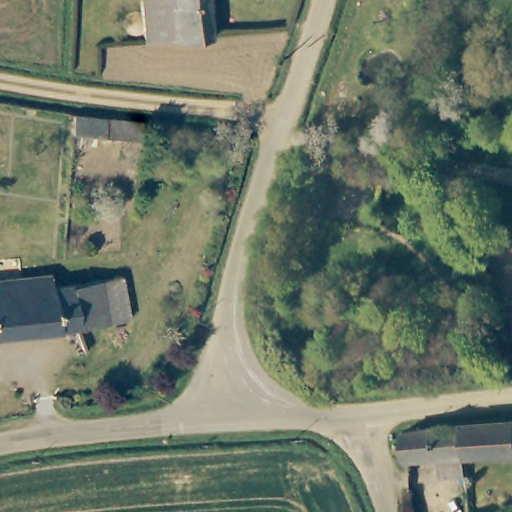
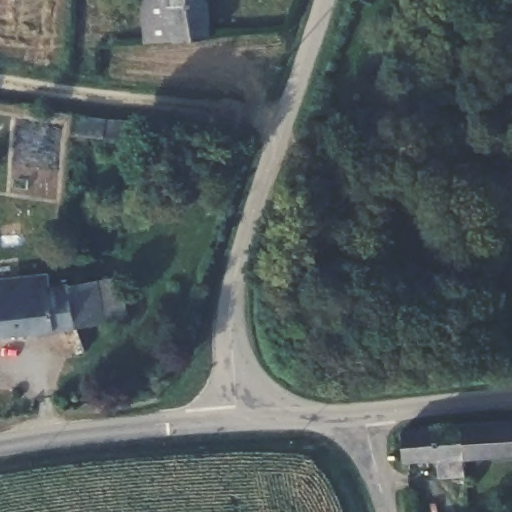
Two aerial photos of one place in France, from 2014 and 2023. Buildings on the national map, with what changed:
unchanged [(145,0),(207,0),(211,36),(150,41),(145,0)]
unchanged [(74,122),(141,132),(140,147),(72,140),(74,122)]
unchanged [(18,274),(46,268),(49,281),(71,277),(79,326),(0,339),(0,277),(18,274)]
unchanged [(83,282),(102,280),(124,276),(131,317),(108,321),(79,326),(71,277),(83,275),(83,282)]
unchanged [(512,318),(512,352),(505,320),(512,318)]
unchanged [(512,428),(512,455),(464,457),(461,431),(512,428)]
unchanged [(431,455),(396,457),(390,435),(461,431),(464,457),(466,472),(434,473),(431,455)]

